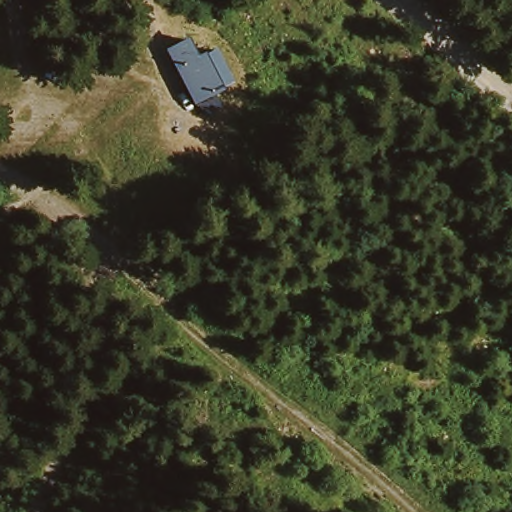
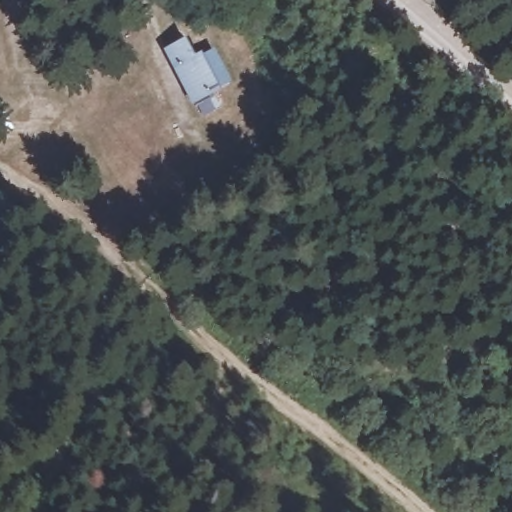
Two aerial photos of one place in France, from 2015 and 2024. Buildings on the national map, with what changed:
unchanged [(169,50),(193,40),(201,54),(210,51),(217,64),(233,87),(219,94),(197,104),(169,50)]

